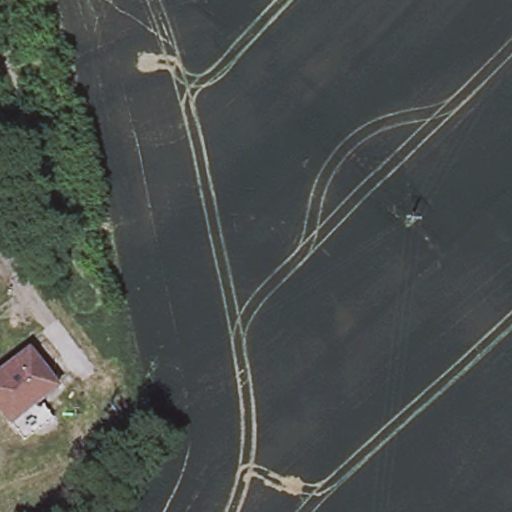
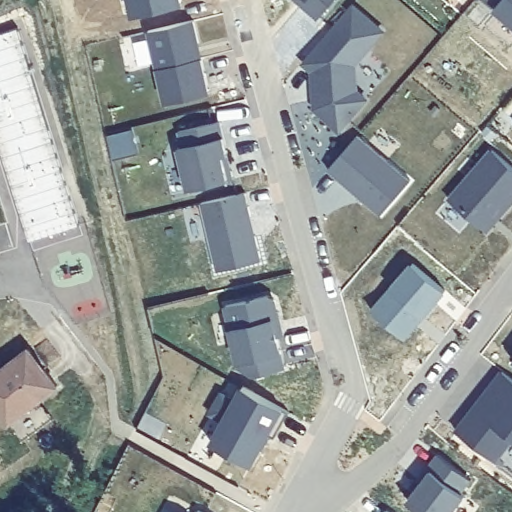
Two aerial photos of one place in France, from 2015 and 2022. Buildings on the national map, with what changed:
new [(127,21),(122,0),(179,0),(181,11),(127,21)]
new [(301,0),(337,0),(322,18),(301,0)]
new [(512,0),(512,21),(487,0),(512,0)]
new [(316,75),(317,73),(305,62),(353,7),(383,33),(355,66),(360,92),(369,100),(344,129),(321,110),(318,99),(316,75)]
new [(195,22),(204,60),(203,60),(211,95),(168,105),(151,32),(195,22)]
new [(17,31),(79,229),(28,244),(0,155),(0,36),(17,31)]
new [(228,154),(223,155),(227,172),(232,171),(234,179),(172,193),(164,158),(180,154),(179,147),(183,147),(179,131),(220,122),(228,154)]
new [(134,132),(138,155),(111,161),(107,137),(134,132)]
new [(330,171),(360,137),(412,183),(383,217),(364,200),(348,187),(330,171)]
new [(489,233),(448,197),(491,149),(512,167),(512,206),(489,233)]
new [(243,195),(260,263),(215,273),(200,206),(243,195)]
new [(445,290),(424,316),(419,312),(412,321),(415,324),(405,336),(373,310),(413,263),(445,290)]
new [(279,312),(285,337),(279,338),(275,320),(287,369),(256,377),(243,369),(229,307),(269,297),(276,302),(279,312)]
unchanged [(30,352),(59,388),(12,425),(0,409),(0,375),(30,352)]
new [(512,354),(512,359),(510,357),(512,354)]
new [(497,462),(454,428),(501,371),(512,379),(512,445),(497,462)]
new [(277,440),(272,437),(265,450),(264,448),(253,467),(214,445),(227,422),(213,415),(224,396),(237,403),(245,388),(291,414),(277,440)]
new [(423,485),(420,482),(429,470),(439,456),(468,478),(442,512),(421,512),(409,502),(433,472),(423,485)]
new [(389,512),(382,512),(385,508),(389,512)]
new [(197,510),(202,512),(194,512),(197,510)]

